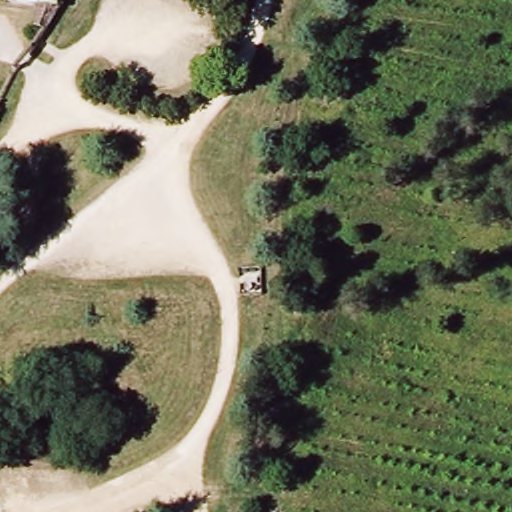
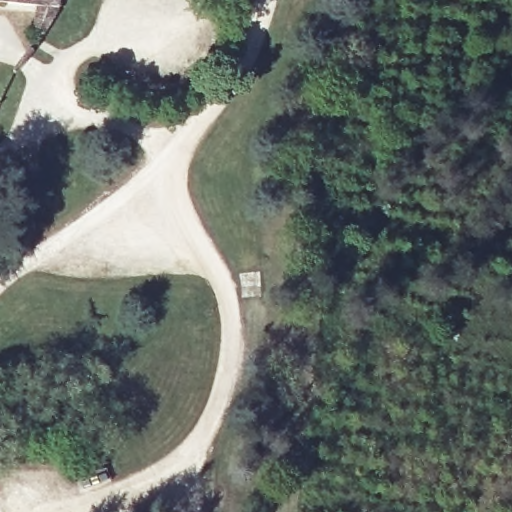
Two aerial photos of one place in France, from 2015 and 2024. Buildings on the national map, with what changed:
unchanged [(60,11),(51,27),(42,27),(42,9),(0,5),(0,0),(61,0),(60,11)]

